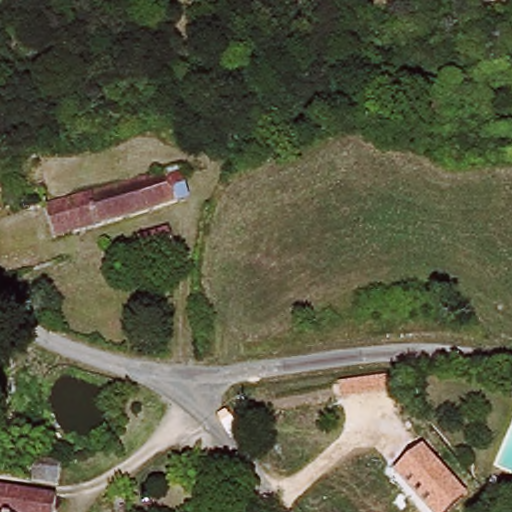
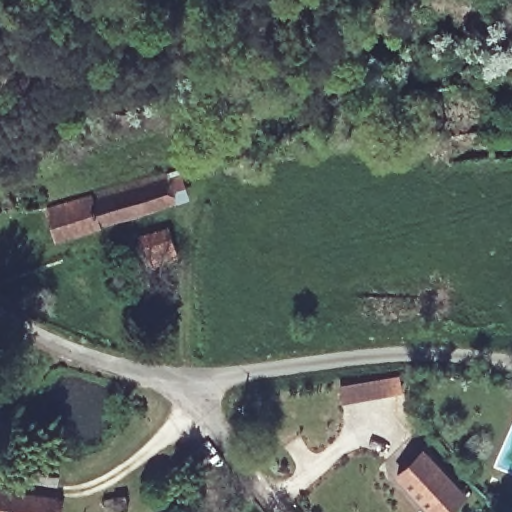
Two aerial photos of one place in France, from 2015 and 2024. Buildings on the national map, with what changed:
unchanged [(176,207),(55,246),(45,214),(167,179),(176,207)]
unchanged [(5,224),(3,215),(0,216),(0,198),(1,200),(39,192),(45,214),(5,224)]
unchanged [(177,230),(184,255),(152,266),(143,241),(177,230)]
unchanged [(450,512),(428,512),(395,474),(422,448),(467,496),(450,512)]
unchanged [(61,462),(60,484),(41,480),(43,460),(61,462)]
unchanged [(49,501),(48,512),(0,512),(0,499),(49,501)]

